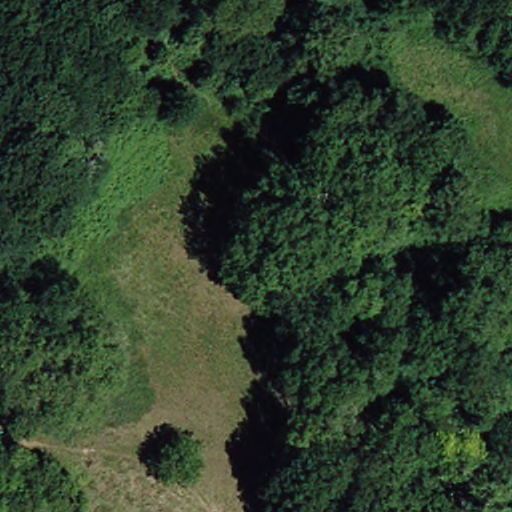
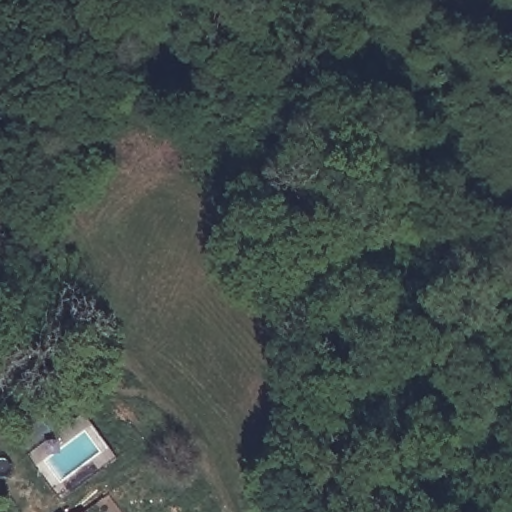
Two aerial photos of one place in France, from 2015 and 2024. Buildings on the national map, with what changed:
unchanged [(56,512),(67,504),(74,512),(56,512)]

